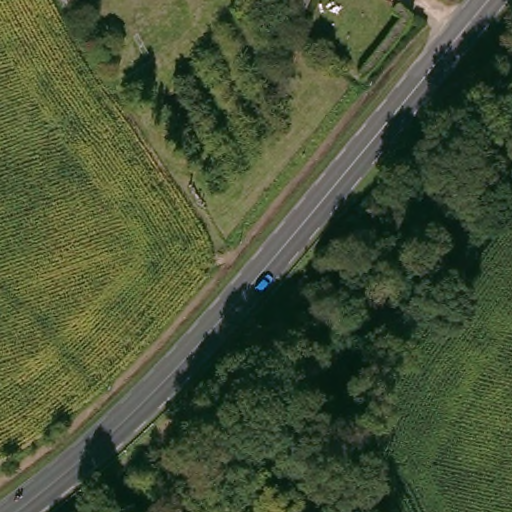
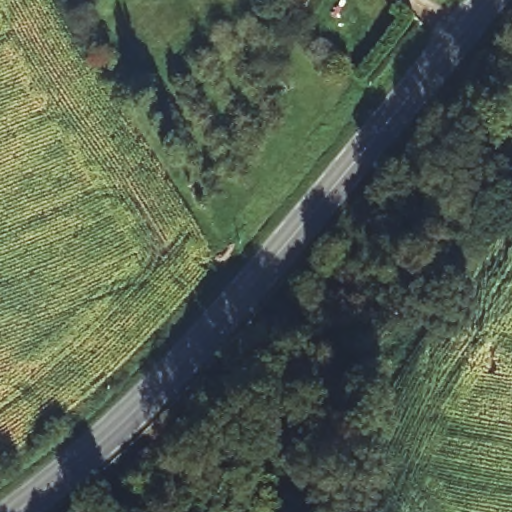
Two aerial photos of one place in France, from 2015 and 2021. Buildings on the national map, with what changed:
unchanged [(310,0),(302,16),(290,10),(295,0),(310,0)]

